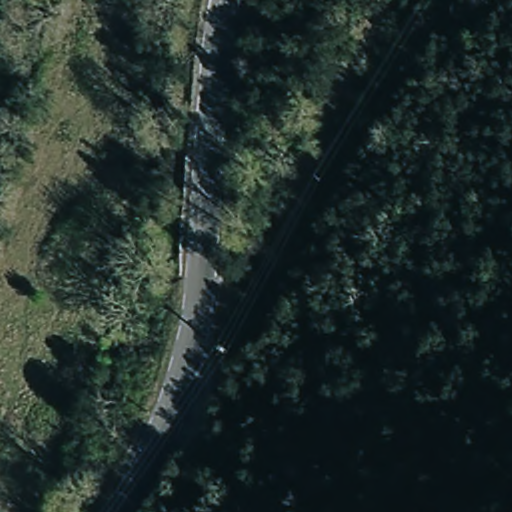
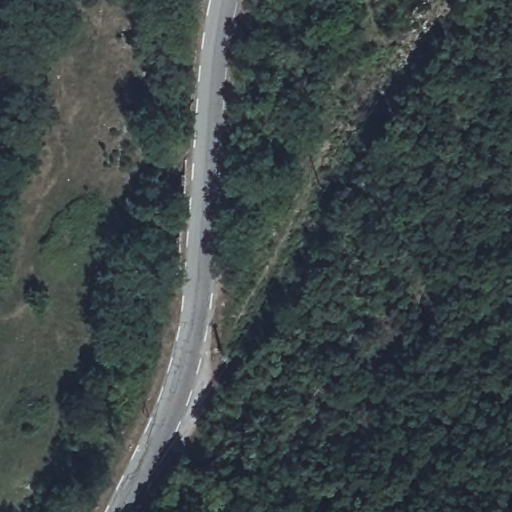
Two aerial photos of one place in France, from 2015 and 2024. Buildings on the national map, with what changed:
unchanged [(0,7),(0,1),(0,0),(35,0),(29,16),(0,7)]

